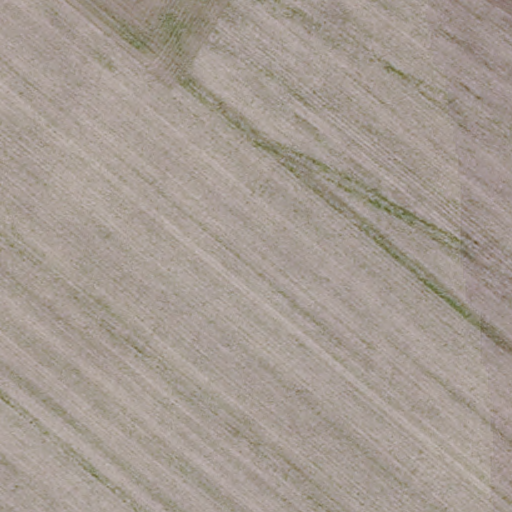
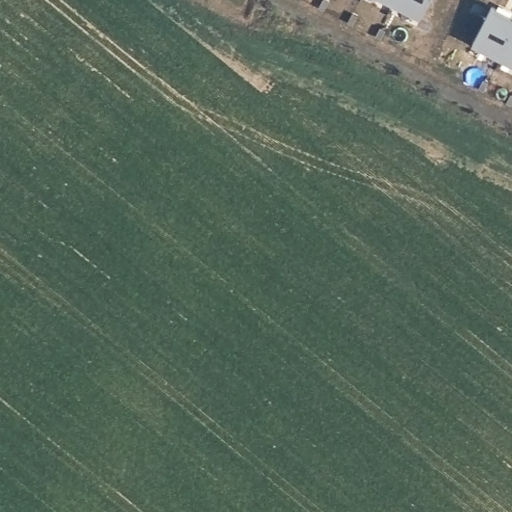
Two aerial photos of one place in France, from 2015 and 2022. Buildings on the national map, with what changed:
new [(423,19),(386,0),(432,0),(423,19)]
new [(512,18),(512,65),(475,45),(492,9),(512,18)]

